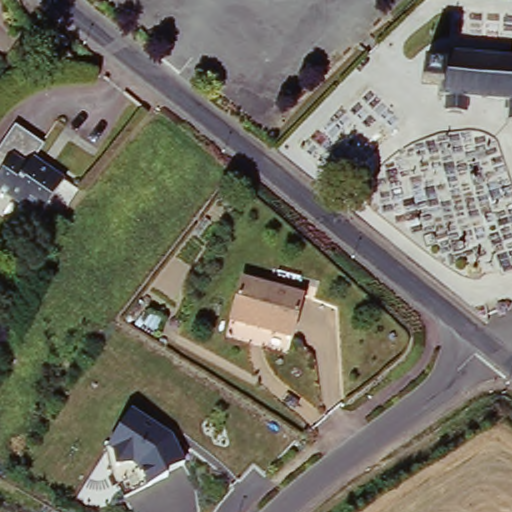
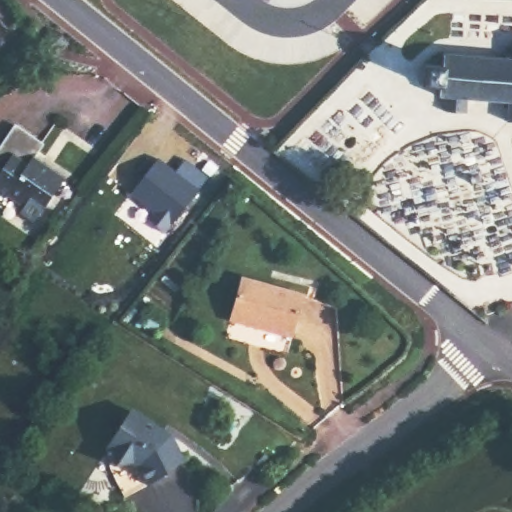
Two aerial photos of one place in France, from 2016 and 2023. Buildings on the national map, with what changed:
unchanged [(74,49),(64,62),(54,51),(64,39),(74,49)]
unchanged [(441,62),(442,51),(453,52),(455,55),(512,59),(512,101),(473,99),(472,115),(449,113),(449,96),(437,96),(438,85),(419,84),(421,62),(441,62)]
unchanged [(91,62),(81,74),(71,66),(81,55),(91,62)]
unchanged [(39,159),(68,180),(36,222),(22,213),(24,208),(0,189),(0,181),(3,177),(0,174),(0,155),(22,125),(49,145),(39,159)]
new [(149,223),(156,212),(131,194),(159,158),(176,172),(187,159),(210,177),(165,233),(149,223)]
unchanged [(312,291),(298,338),(230,323),(239,276),(312,291)]
unchanged [(176,432),(188,469),(153,483),(141,463),(113,447),(136,412),(176,432)]

